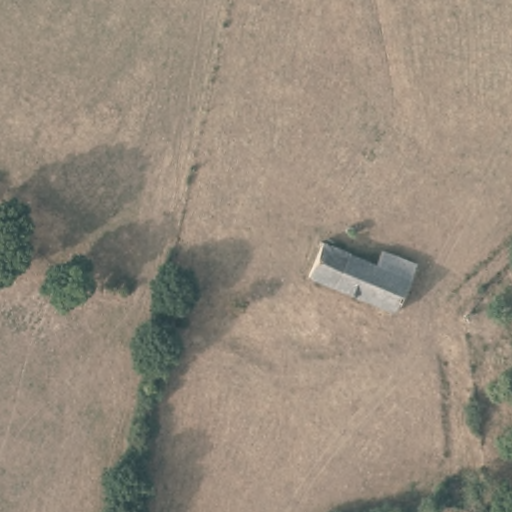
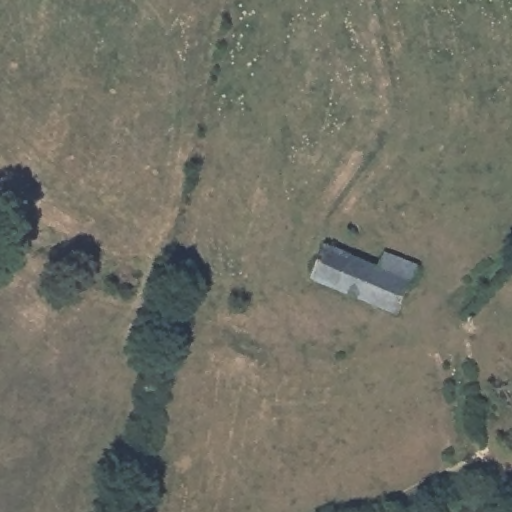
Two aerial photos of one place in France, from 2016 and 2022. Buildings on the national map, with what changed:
unchanged [(398,313),(310,277),(326,242),(378,264),(384,250),(418,265),(398,313)]

